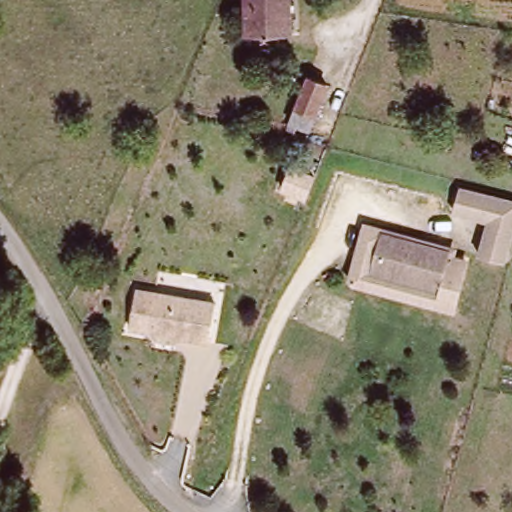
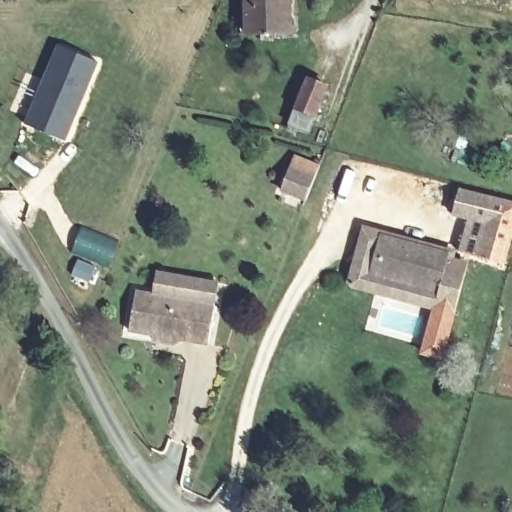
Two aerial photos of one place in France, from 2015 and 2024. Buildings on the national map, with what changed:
unchanged [(249,35),(248,0),(292,0),(294,33),(249,35)]
new [(100,62),(66,142),(25,124),(58,47),(100,62)]
unchanged [(306,85),(324,92),(307,137),(289,130),(306,85)]
new [(292,170),(317,180),(309,201),(285,190),(292,170)]
unchanged [(512,197),(512,247),(507,267),(499,265),(477,259),(485,225),(449,216),(456,191),(458,184),(512,197)]
unchanged [(374,269),(382,232),(451,247),(443,285),(374,269)]
unchanged [(135,322),(144,282),(221,302),(213,342),(182,334),(181,340),(157,333),(158,327),(135,322)]

